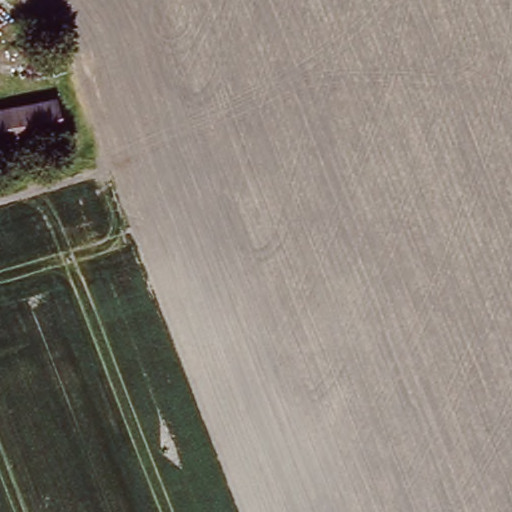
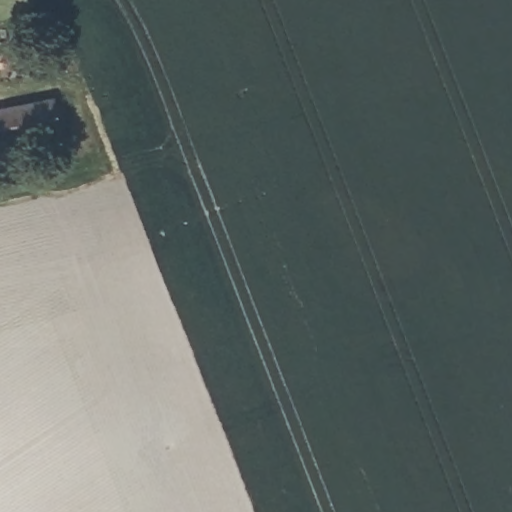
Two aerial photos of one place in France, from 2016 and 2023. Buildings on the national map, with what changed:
unchanged [(0,139),(0,107),(60,96),(66,126),(0,139)]

